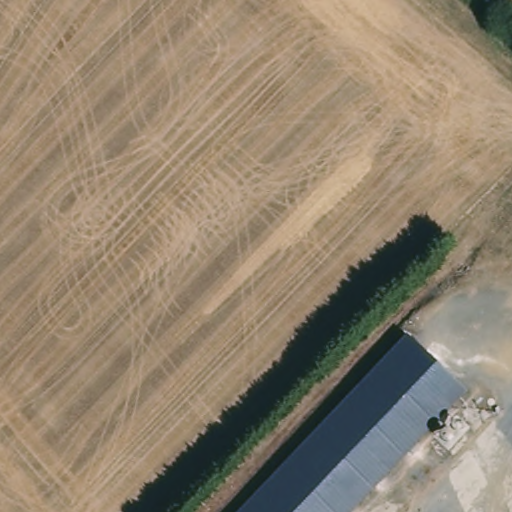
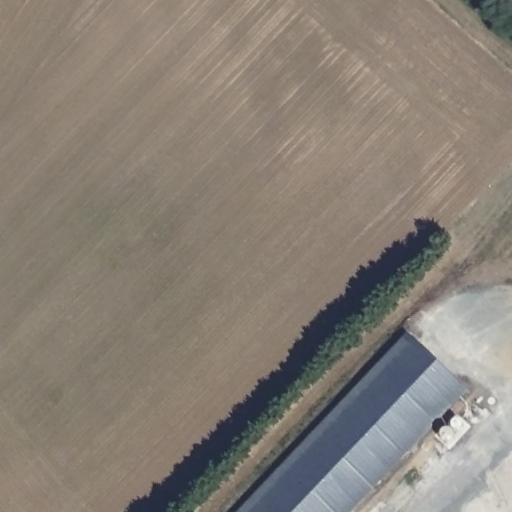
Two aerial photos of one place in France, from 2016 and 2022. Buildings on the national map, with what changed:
unchanged [(349,512),(236,512),(404,337),(463,393),(349,512)]

